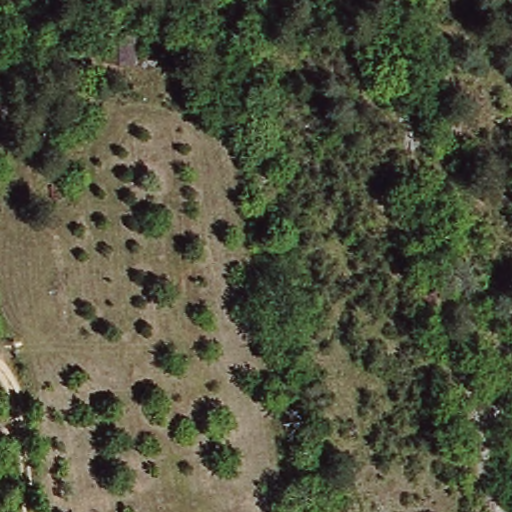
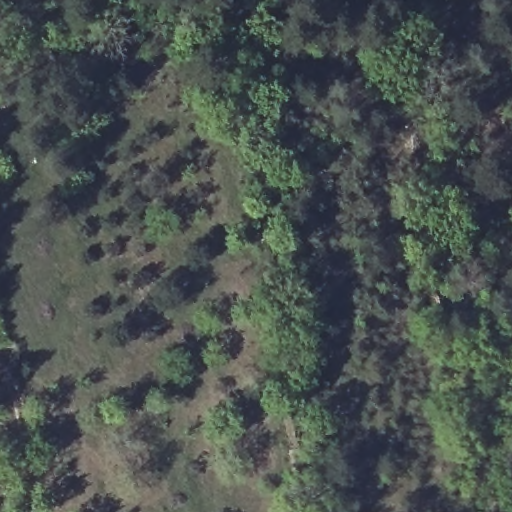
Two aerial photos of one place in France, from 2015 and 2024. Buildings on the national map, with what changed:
unchanged [(110,38),(134,39),(132,75),(109,74),(110,38)]
unchanged [(433,298),(442,317),(429,324),(419,305),(433,298)]

